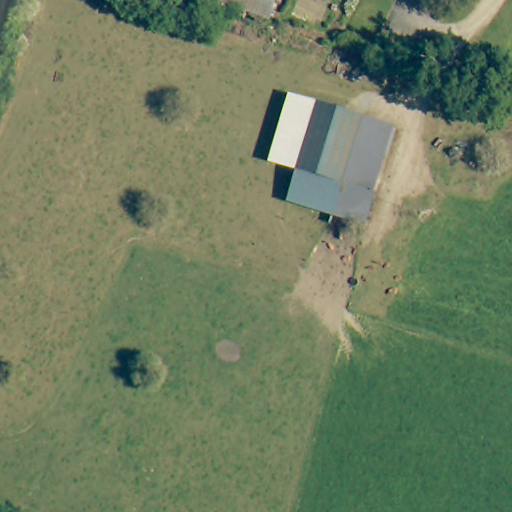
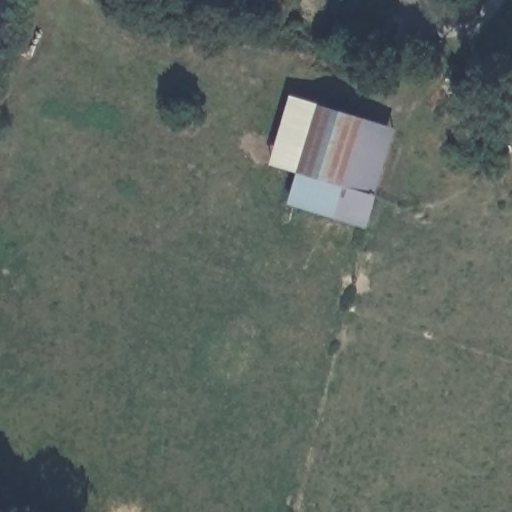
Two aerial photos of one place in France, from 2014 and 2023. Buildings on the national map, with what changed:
unchanged [(395,129),(365,227),(296,206),(327,108),(395,129)]

